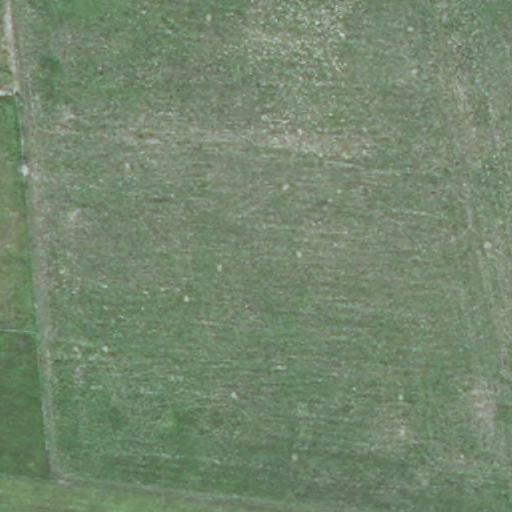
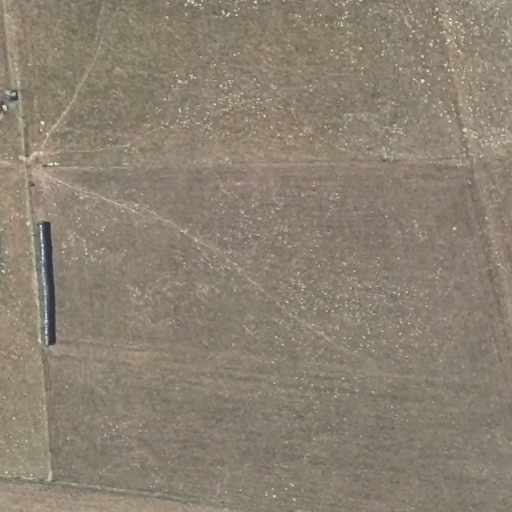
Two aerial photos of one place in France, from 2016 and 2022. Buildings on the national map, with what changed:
[]

